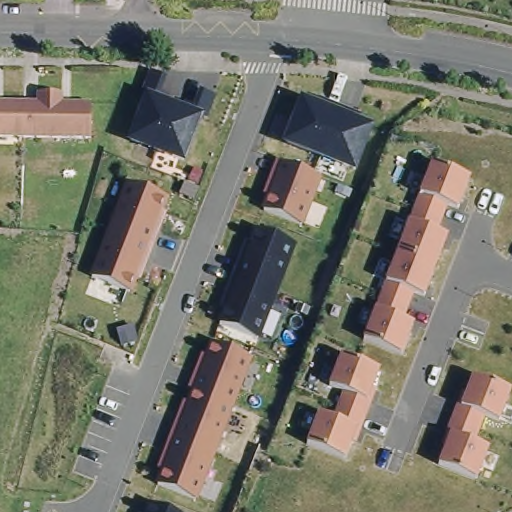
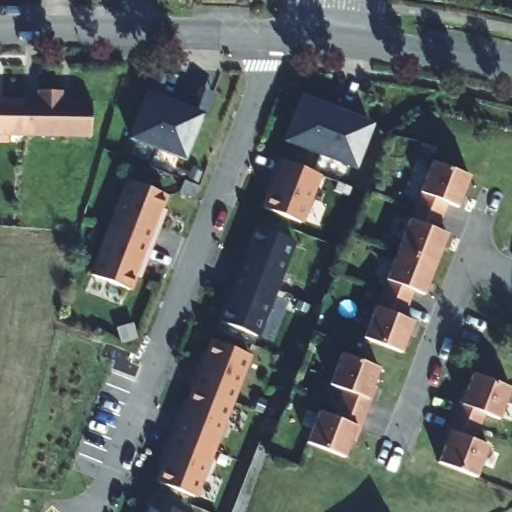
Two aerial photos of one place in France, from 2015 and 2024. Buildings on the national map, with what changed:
unchanged [(37,85),(61,85),(61,99),(70,99),(70,95),(90,95),(90,131),(22,130),(23,94),(37,94),(37,85)]
unchanged [(369,116),(350,165),(279,139),(298,89),(369,116)]
unchanged [(127,139),(148,91),(203,111),(183,160),(127,139)]
unchanged [(2,98),(2,94),(23,94),(22,130),(0,130),(0,98),(2,98)]
unchanged [(317,172),(301,218),(258,201),(273,155),(317,172)]
unchanged [(432,161),(470,176),(457,207),(447,203),(437,230),(447,234),(424,294),(413,290),(403,318),(413,322),(402,353),(363,338),(432,161)]
unchanged [(125,179),(168,196),(130,290),(85,274),(125,179)]
unchanged [(254,220),(295,236),(258,334),(215,318),(254,220)]
unchanged [(207,339),(250,356),(194,494),(150,478),(207,339)]
unchanged [(341,353),(380,369),(368,398),(372,399),(360,429),(357,428),(345,457),(306,442),(341,353)]
unchanged [(466,472),(429,453),(444,424),(440,423),(455,395),(458,397),(473,369),(510,388),(466,472)]
unchanged [(145,502),(171,512),(141,512),(145,502)]

